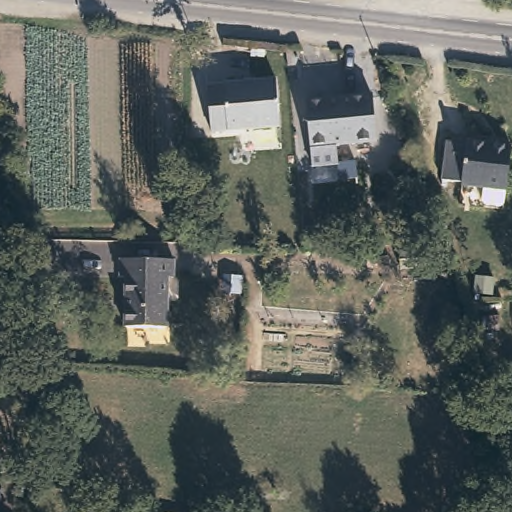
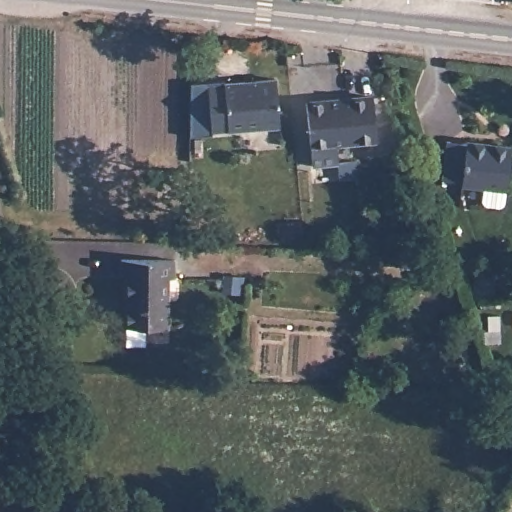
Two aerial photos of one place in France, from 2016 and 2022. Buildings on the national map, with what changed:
unchanged [(280,124),(211,128),(208,82),(226,82),(227,79),(277,75),(280,124)]
unchanged [(343,102),(373,100),(376,143),(310,147),(307,104),(328,103),(343,102)]
unchanged [(511,143),(507,186),(505,200),(501,203),(487,202),(484,198),(486,184),(465,182),(465,180),(444,177),(448,138),(467,140),(468,137),(511,143)]
unchanged [(423,267),(398,269),(398,261),(397,250),(412,250),(421,249),(423,267)]
unchanged [(177,261),(176,280),(170,280),(167,329),(124,327),(126,279),(121,279),(121,259),(177,261)]
unchanged [(0,500),(0,471),(3,478),(0,500)]

